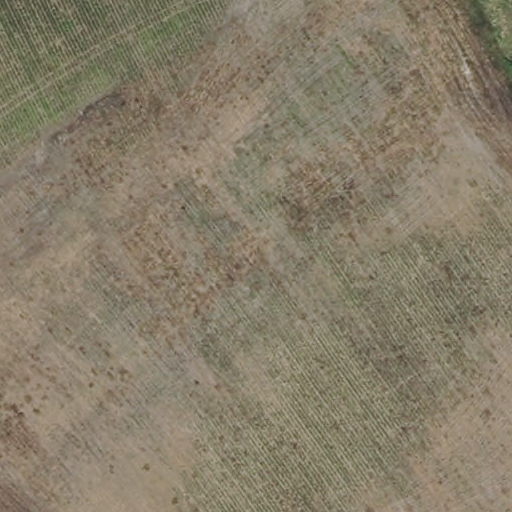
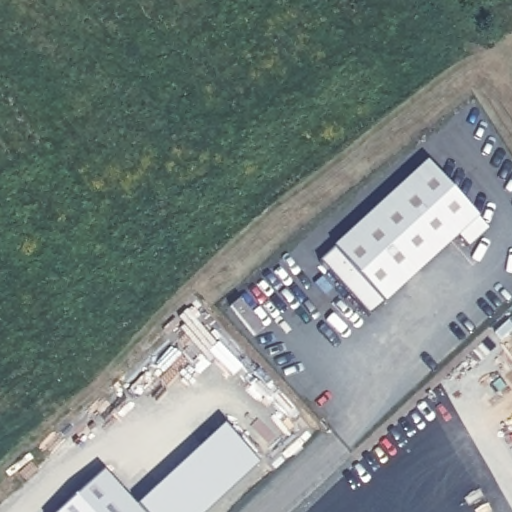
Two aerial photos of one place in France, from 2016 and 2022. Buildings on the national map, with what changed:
new [(468,246),(458,237),(383,305),(381,301),(368,313),(321,260),(427,162),(487,229),(468,246)]
new [(103,473),(138,512),(61,512),(103,473)]

